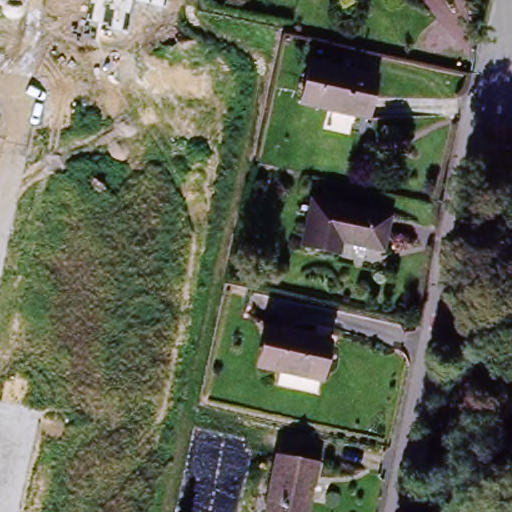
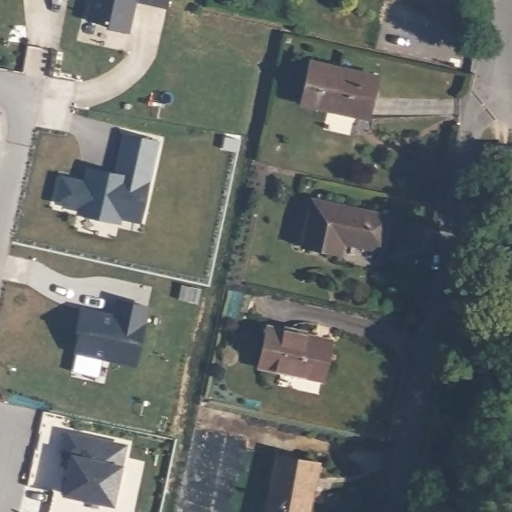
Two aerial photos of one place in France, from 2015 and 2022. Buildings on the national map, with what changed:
new [(92,0),(168,0),(167,7),(135,1),(128,32),(107,27),(107,25),(87,20),(92,0)]
unchanged [(370,86),(361,122),(300,104),(309,67),(370,86)]
new [(160,142),(142,223),(122,219),(120,225),(76,215),(78,208),(54,204),(60,174),(84,181),(87,166),(114,172),(122,134),(160,142)]
unchanged [(312,198),(388,218),(380,252),(349,245),(350,237),(340,235),(334,256),(300,246),(312,198)]
new [(80,332),(77,331),(82,310),(114,317),(117,301),(149,307),(135,365),(76,352),(80,332)]
unchanged [(259,365),(269,326),(332,342),(322,382),(259,365)]
new [(128,445),(124,465),(114,506),(62,496),(72,455),(60,456),(66,431),(128,445)]
unchanged [(315,462),(304,512),(263,512),(277,452),(315,462)]

